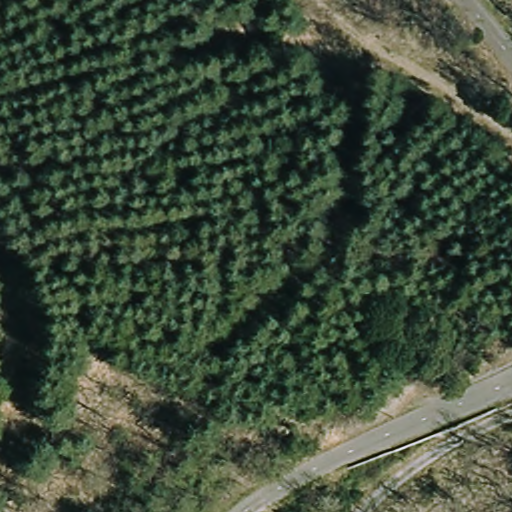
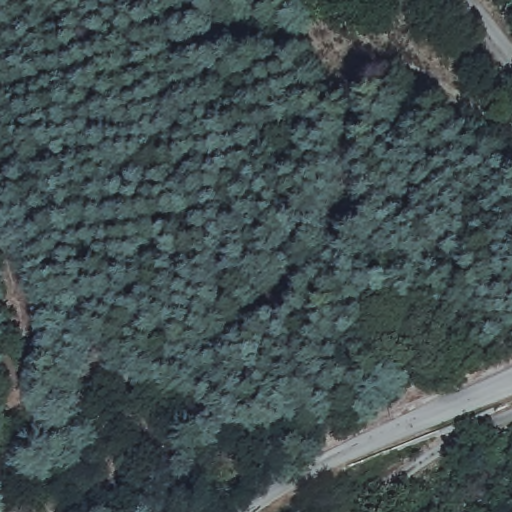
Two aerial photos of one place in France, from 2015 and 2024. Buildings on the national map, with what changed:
[]

